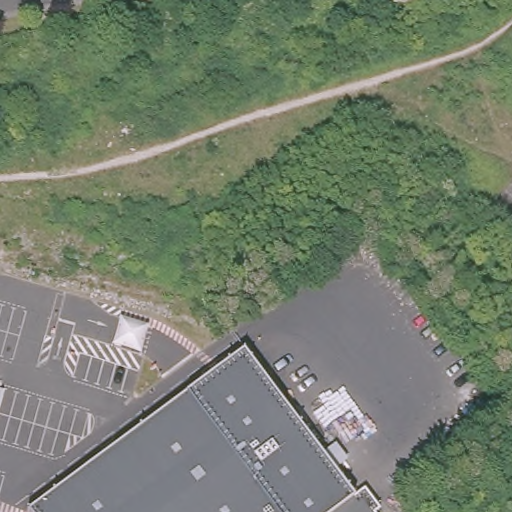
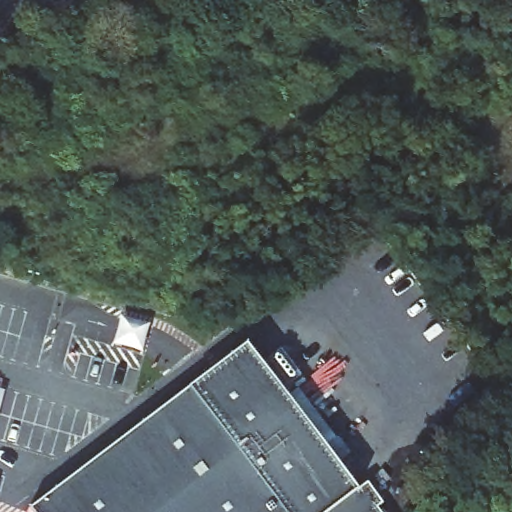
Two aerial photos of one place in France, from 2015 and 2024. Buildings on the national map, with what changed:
unchanged [(246,342),(356,485),(366,476),(382,497),(376,501),(385,512),(27,512),(26,510),(241,345),(246,342)]

